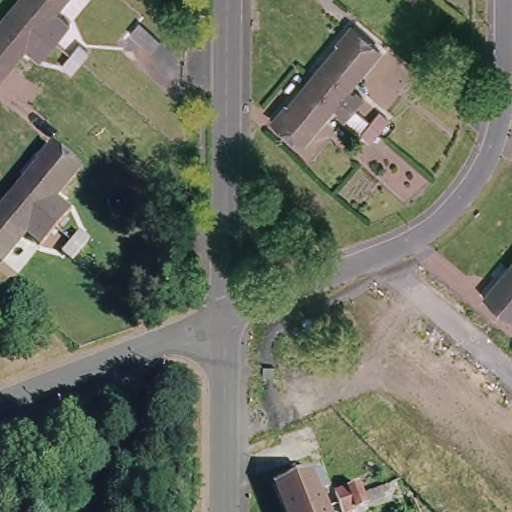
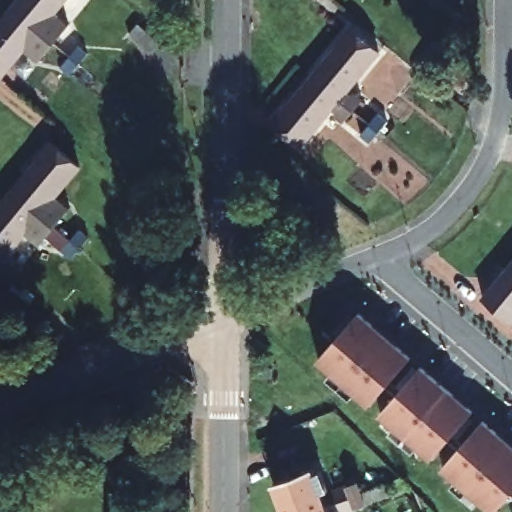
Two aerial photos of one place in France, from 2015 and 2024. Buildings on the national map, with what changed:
unchanged [(18,0),(65,0),(45,23),(50,28),(54,24),(72,39),(64,48),(13,6),(18,0)]
unchanged [(64,48),(57,56),(39,41),(42,38),(36,33),(1,76),(0,76),(0,22),(13,6),(64,48)]
unchanged [(336,39),(351,22),(380,47),(348,85),(371,105),(363,114),(313,72),(338,42),(336,39)]
unchanged [(368,133),(332,104),(301,142),(271,117),(286,101),(288,102),(313,72),(363,114),(376,124),(368,133)]
unchanged [(16,96),(25,85),(45,101),(35,112),(16,96)]
unchanged [(81,168),(46,209),(50,213),(54,208),(73,224),(65,233),(14,190),(38,161),(37,159),(51,142),(81,168)]
unchanged [(88,173),(97,162),(123,183),(114,195),(88,173)]
unchanged [(65,233),(57,243),(39,226),(42,223),(38,219),(2,260),(0,259),(0,207),(14,190),(65,233)]
unchanged [(485,296),(512,264),(512,319),(485,296)]
new [(359,313),(410,357),(371,404),(319,358),(359,313)]
new [(422,366),(473,412),(432,457),(382,412),(422,366)]
new [(275,370),(274,380),(262,380),(262,370),(275,370)]
new [(483,418),(512,445),(512,492),(495,512),(442,465),(483,418)]
demolished [(340,427),(344,440),(323,448),(319,434),(340,427)]
unchanged [(318,466),(320,471),(325,469),(332,488),(326,490),(331,504),(308,512),(291,512),(280,479),(318,466)]
unchanged [(347,510),(344,500),(341,489),(364,482),(367,492),(370,502),(347,510)]
unchanged [(334,512),(308,512),(331,504),(334,512)]

